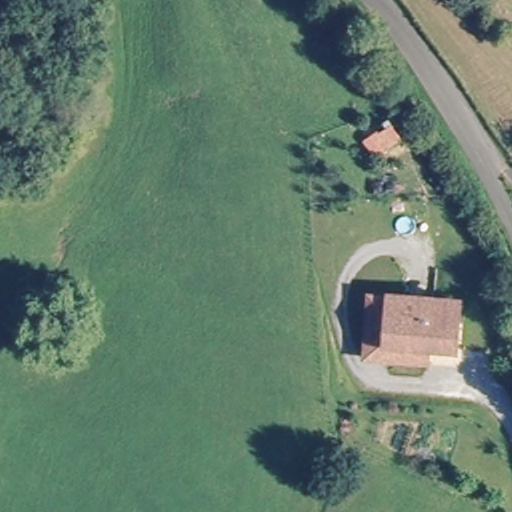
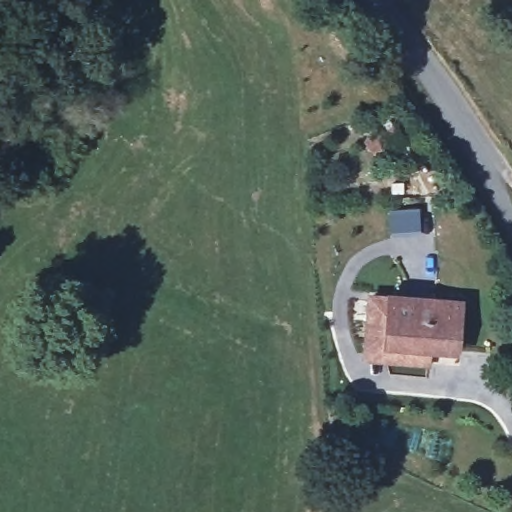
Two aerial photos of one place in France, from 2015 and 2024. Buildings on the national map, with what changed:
unchanged [(386,346),(385,351),(364,348),(370,297),(457,305),(453,351),(386,346)]

